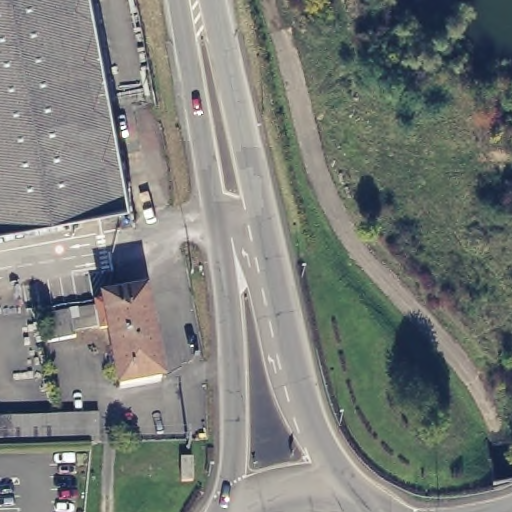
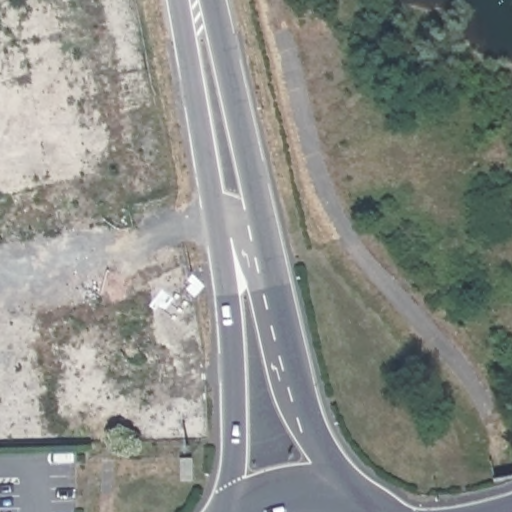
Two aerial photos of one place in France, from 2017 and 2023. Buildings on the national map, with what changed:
demolished [(90,0),(121,170),(122,170),(128,197),(0,221),(0,0),(90,0)]
unchanged [(168,360),(161,361),(163,376),(123,384),(113,321),(78,327),(79,332),(49,339),(44,311),(108,300),(148,292),(159,352),(166,350),(168,360)]
unchanged [(97,415),(98,443),(89,443),(59,444),(59,416),(97,415)]
demolished [(59,444),(0,446),(0,419),(59,416),(59,444)]
unchanged [(178,459),(192,459),(193,481),(179,482),(178,459)]

